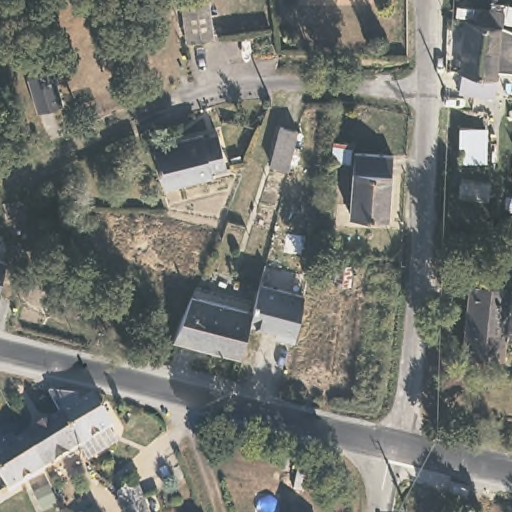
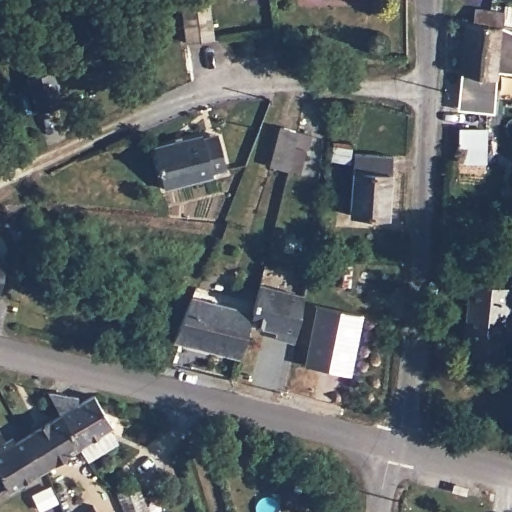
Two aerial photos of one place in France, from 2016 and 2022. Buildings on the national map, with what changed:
unchanged [(213,31),(188,36),(182,0),(208,0),(212,26),(213,31)]
unchanged [(503,82),(497,81),(494,101),(474,98),(459,97),(464,49),(466,23),(467,23),(468,17),(474,17),(477,7),(506,10),(503,25),(512,31),(512,84),(503,82)]
unchanged [(24,82),(50,75),(59,109),(33,115),(24,82)]
unchanged [(486,164),(461,163),(462,113),(469,113),(487,112),(487,115),(486,164)]
unchanged [(269,161),(279,121),(298,126),(298,128),(288,165),(269,161)]
unchanged [(203,133),(204,137),(218,133),(228,167),(213,171),(214,174),(166,186),(164,187),(154,146),(179,139),(203,133)]
unchanged [(353,142),(351,162),(336,160),(338,140),(353,142)]
unchanged [(392,157),(388,219),(350,217),(354,155),(392,157)]
unchanged [(1,293),(0,293),(0,259),(9,261),(1,293)]
unchanged [(497,265),(495,293),(507,293),(503,362),(460,359),(464,291),(469,291),(471,264),(497,265)]
unchanged [(352,268),(350,287),(337,286),(339,267),(352,268)]
unchanged [(295,342),(275,337),(278,331),(249,324),(251,314),(259,284),(304,295),(300,317),(295,342)]
unchanged [(251,314),(249,324),(240,359),(200,349),(175,342),(194,299),(196,299),(251,314)]
new [(352,374),(305,364),(318,304),(363,313),(352,374)]
unchanged [(48,392),(78,396),(76,405),(93,396),(111,425),(79,445),(61,414),(48,392)]
unchanged [(24,436),(61,414),(79,445),(43,466),(24,436)]
unchanged [(0,475),(0,432),(9,446),(24,436),(43,466),(8,487),(0,475)]
unchanged [(128,512),(118,489),(139,477),(153,512),(128,512)]
unchanged [(92,512),(96,509),(98,512),(92,512)]

